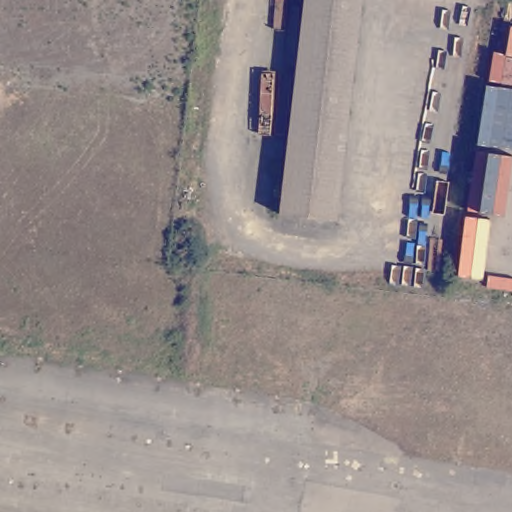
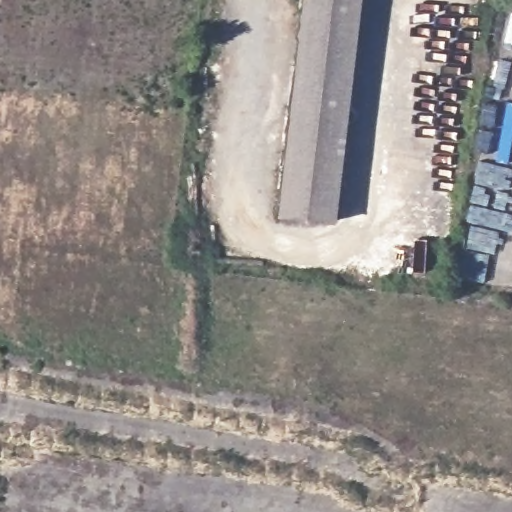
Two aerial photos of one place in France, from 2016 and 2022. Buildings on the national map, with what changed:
unchanged [(363,0),(333,221),(276,214),(307,0),(363,0)]

